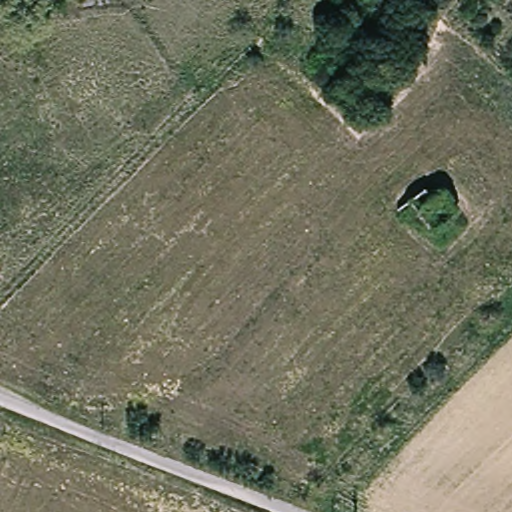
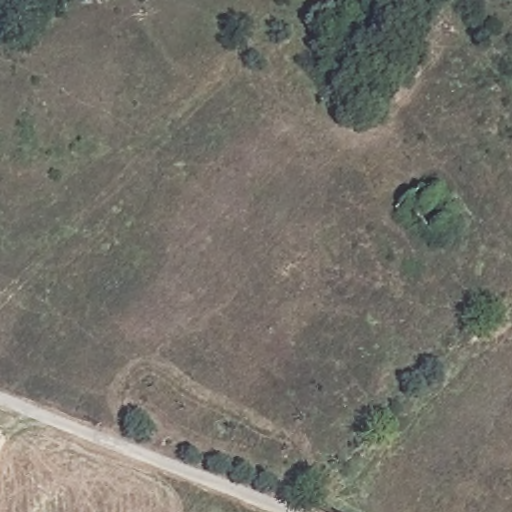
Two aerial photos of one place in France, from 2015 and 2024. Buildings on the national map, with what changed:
[]

